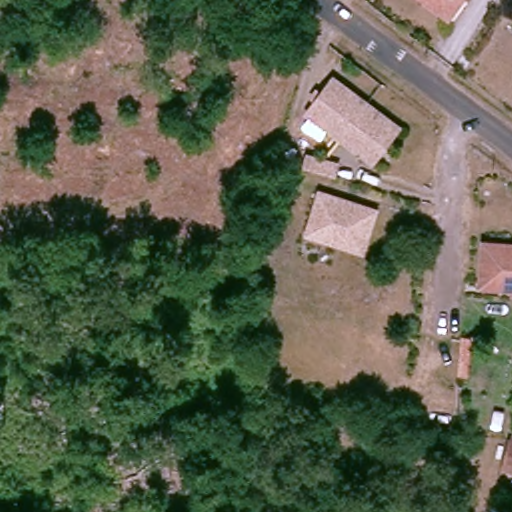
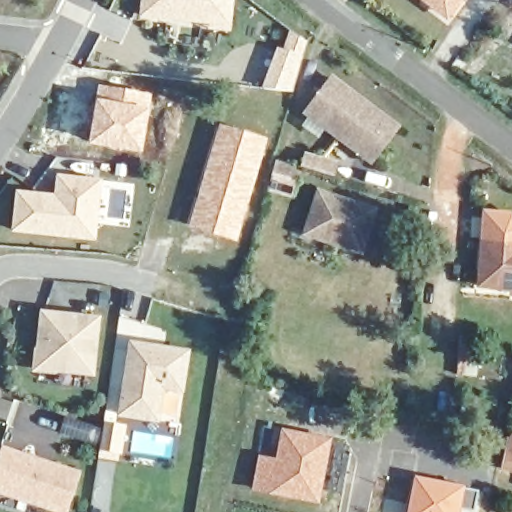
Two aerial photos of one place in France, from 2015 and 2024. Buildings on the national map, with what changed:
new [(211,23),(141,19),(143,0),(235,0),(232,32),(210,29),(211,23)]
unchanged [(451,15),(431,0),(463,0),(451,15)]
new [(278,48),(290,53),(298,37),(311,42),(291,95),(264,85),(278,48)]
unchanged [(370,162),(306,114),(332,80),(395,129),(370,162)]
new [(221,124),(269,139),(238,242),(190,228),(221,124)]
unchanged [(302,170),(307,155),(333,163),(330,178),(302,170)]
new [(56,195),(58,175),(104,179),(97,243),(13,233),(18,192),(56,195)]
unchanged [(305,216),(313,191),(368,207),(356,249),(313,236),(301,233),(305,216)]
unchanged [(485,245),(512,248),(512,294),(481,289),(485,245)]
new [(57,372),(56,375),(33,372),(34,347),(37,347),(41,310),(102,315),(95,377),(57,372)]
new [(130,341),(190,350),(184,393),(164,390),(160,422),(118,416),(130,341)]
new [(333,439),(320,505),(252,492),(259,455),(275,458),(281,428),(333,439)]
unchanged [(512,442),(512,469),(508,468),(512,442)]
new [(79,471),(67,512),(51,512),(0,495),(0,454),(3,445),(79,471)]
new [(407,512),(414,483),(478,492),(475,512),(461,509),(461,512),(407,512)]

